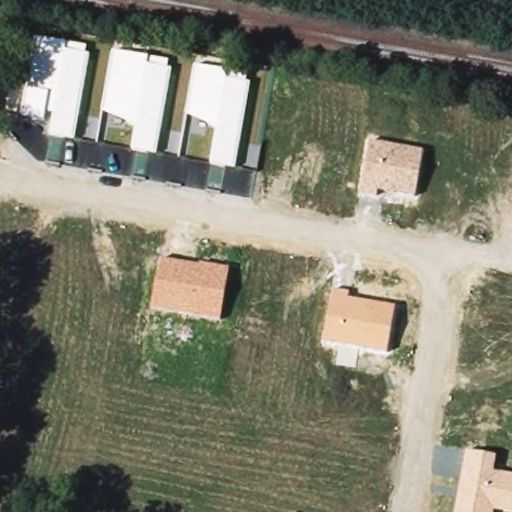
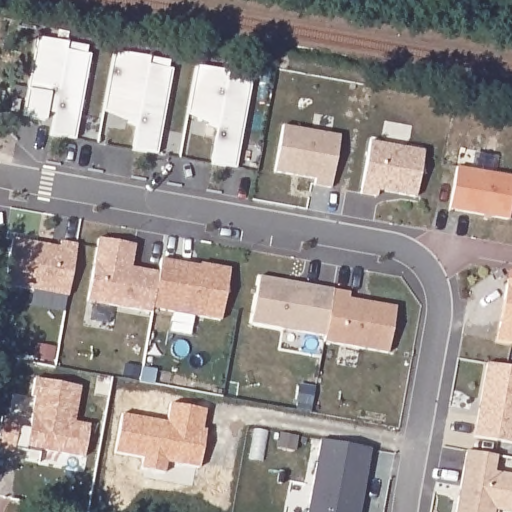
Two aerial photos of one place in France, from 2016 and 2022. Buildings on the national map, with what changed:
unchanged [(50,138),(54,115),(46,114),(44,121),(21,117),(32,38),(88,48),(86,55),(90,55),(76,140),(50,138)]
unchanged [(168,70),(172,71),(157,156),(133,152),(137,127),(103,114),(113,53),(170,63),(168,70)]
unchanged [(248,83),(252,85),(237,170),(212,165),(219,130),(188,116),(196,66),(248,76),(248,83)]
new [(283,126),(340,136),(331,188),(314,185),(315,179),(274,172),(283,126)]
unchanged [(416,197),(378,191),(377,197),(362,195),(369,142),(424,151),(416,197)]
new [(512,177),(512,197),(508,220),(449,210),(457,168),(512,177)]
new [(87,299),(98,238),(136,244),(132,267),(159,272),(154,311),(87,299)]
new [(12,239),(60,247),(61,241),(77,244),(68,296),(4,285),(12,239)]
unchanged [(221,321),(154,311),(161,260),(229,269),(221,321)]
new [(512,271),(512,344),(497,342),(508,280),(509,271),(512,271)]
new [(250,323),(259,276),(334,289),(326,336),(250,323)]
unchanged [(388,354),(324,344),(334,289),(350,293),(349,300),(395,308),(388,354)]
new [(512,367),(512,444),(474,437),(487,363),(512,367)]
new [(83,459),(15,446),(14,452),(0,450),(0,418),(18,421),(18,426),(29,427),(34,397),(31,397),(34,378),(80,387),(75,421),(90,424),(83,459)]
new [(321,440),(371,449),(359,512),(307,512),(321,440)]
unchanged [(494,512),(456,512),(468,451),(497,456),(494,473),(512,475),(512,512),(500,512),(494,511),(494,512)]

